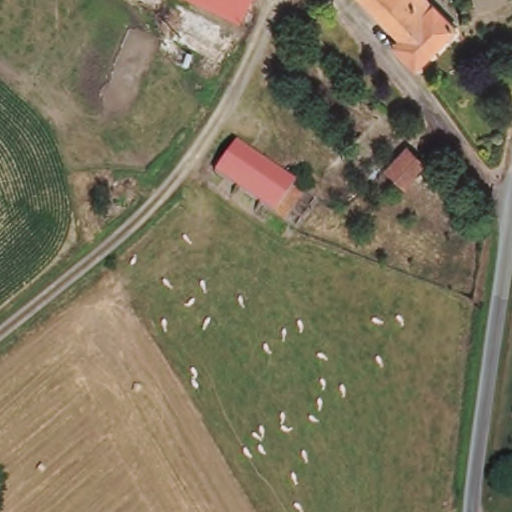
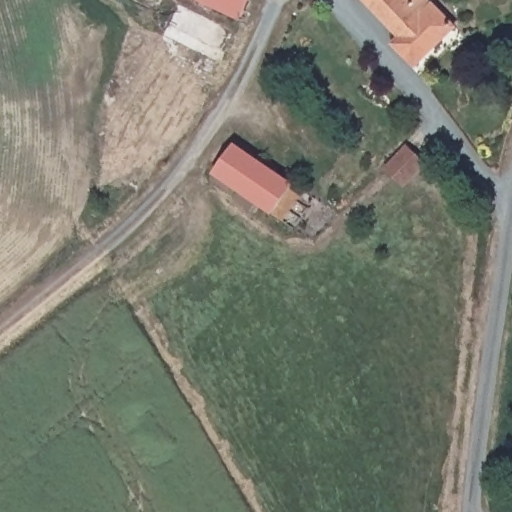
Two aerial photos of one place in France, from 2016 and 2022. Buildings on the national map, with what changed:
unchanged [(245,21),(196,0),(254,0),(250,11),(245,21)]
unchanged [(403,46),(360,0),(425,0),(436,11),(403,46)]
unchanged [(403,46),(436,11),(457,32),(420,70),(415,76),(396,55),(403,46)]
unchanged [(427,132),(444,151),(419,174),(403,157),(427,132)]
unchanged [(226,144),(229,139),(295,192),(274,217),(212,169),(226,144)]

